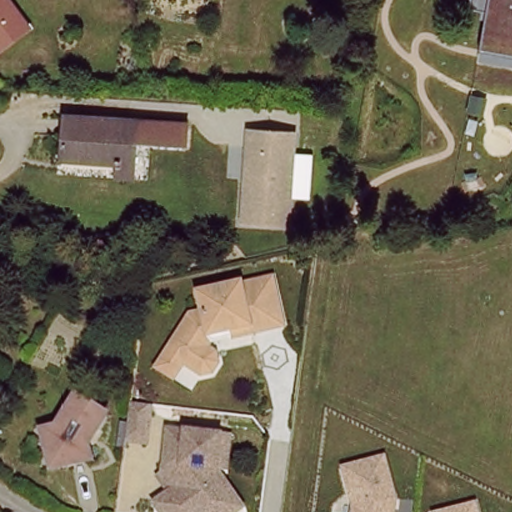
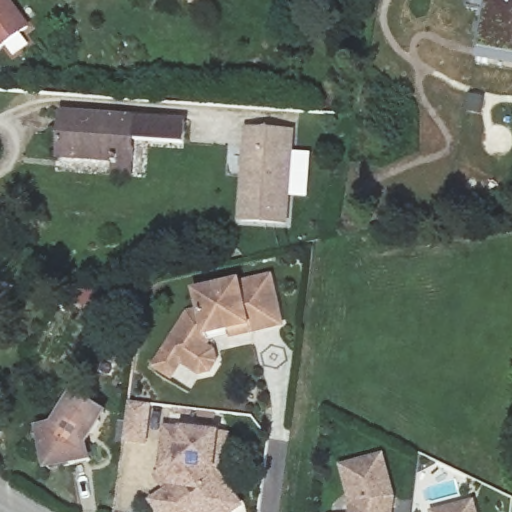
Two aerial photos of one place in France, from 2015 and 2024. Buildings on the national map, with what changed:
unchanged [(0,51),(0,0),(10,0),(30,26),(0,51)]
unchanged [(485,12),(466,9),(467,0),(512,0),(512,64),(477,58),(485,12)]
unchanged [(116,178),(117,164),(63,160),(67,114),(140,119),(138,165),(137,180),(116,178)]
unchanged [(144,120),(192,123),(190,148),(142,146),(144,120)]
unchanged [(240,223),(245,127),(297,131),(290,225),(240,223)]
unchanged [(165,369),(175,354),(197,316),(209,313),(205,294),(247,283),(247,285),(278,277),(293,338),(260,346),(240,351),(237,342),(217,347),(220,355),(222,355),(225,364),(220,373),(210,376),(192,365),(183,380),(165,369)]
unchanged [(49,448),(45,428),(67,423),(70,418),(65,414),(73,402),(87,399),(102,408),(105,422),(97,435),(92,432),(88,437),(94,460),(75,464),(54,469),(49,448)]
unchanged [(158,412),(152,450),(132,446),(138,409),(158,412)]
unchanged [(231,440),(227,474),(217,473),(242,510),(238,512),(161,512),(156,504),(177,490),(165,471),(170,432),(222,439),(231,440)]
unchanged [(351,502),(340,465),(385,454),(397,498),(395,512),(350,512),(351,502)]
unchanged [(479,512),(432,512),(476,501),(479,512)]

